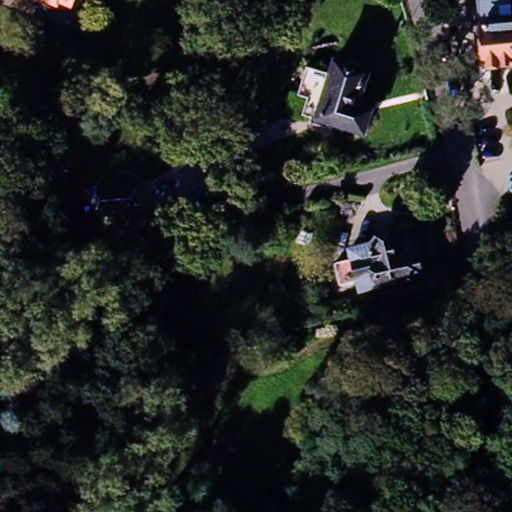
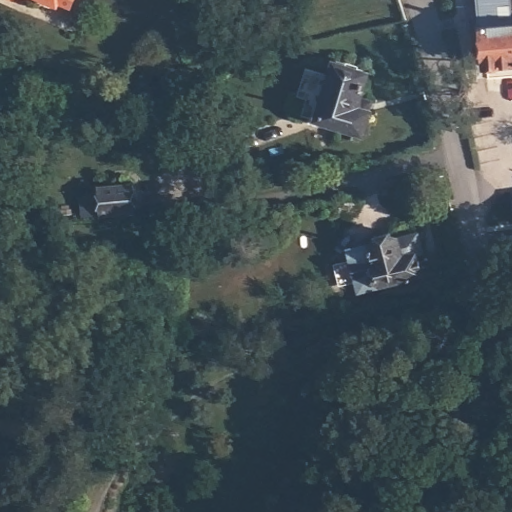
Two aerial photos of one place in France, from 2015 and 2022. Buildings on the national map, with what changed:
unchanged [(473,0),(512,0),(512,5),(473,8),(473,0)]
unchanged [(477,20),(512,18),(512,68),(480,71),(477,20)]
unchanged [(328,111),(308,106),(315,74),(334,77),(336,68),(386,76),(373,135),(325,131),(328,111)]
unchanged [(127,209),(104,217),(98,197),(121,190),(127,209)]
unchanged [(502,212),(512,212),(512,242),(503,242),(502,212)]
unchanged [(372,271),(368,242),(426,232),(432,260),(372,271)]

